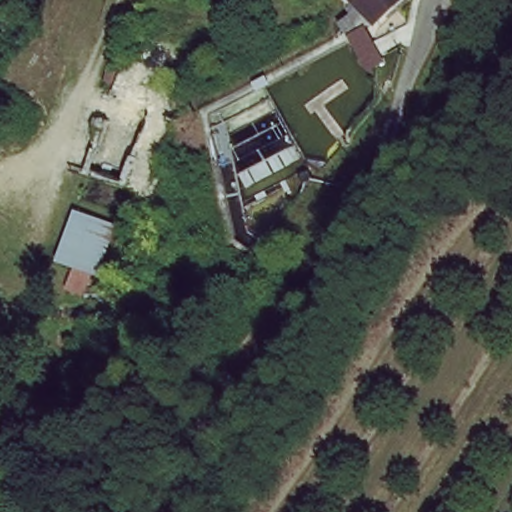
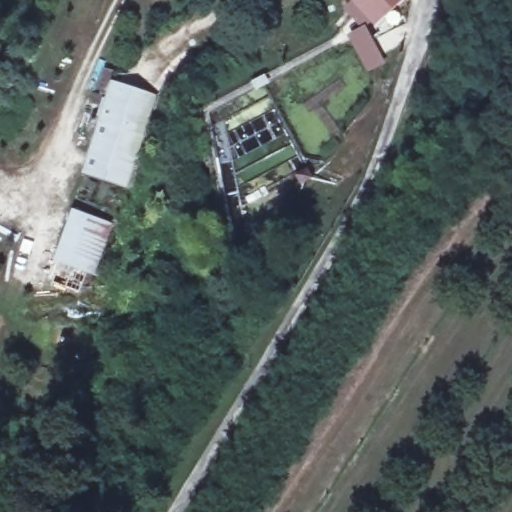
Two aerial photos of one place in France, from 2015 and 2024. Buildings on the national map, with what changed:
unchanged [(364,20),(350,32),(339,18),(355,3),(352,0),(399,0),(373,22),(364,20)]
new [(156,100),(128,191),(80,179),(109,89),(156,100)]
unchanged [(113,214),(88,271),(56,258),(74,203),(113,214)]

